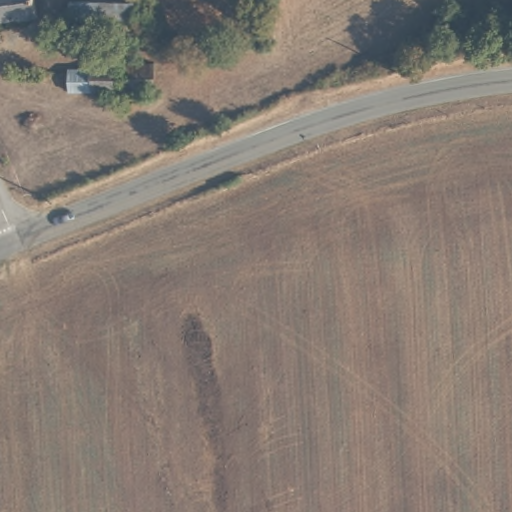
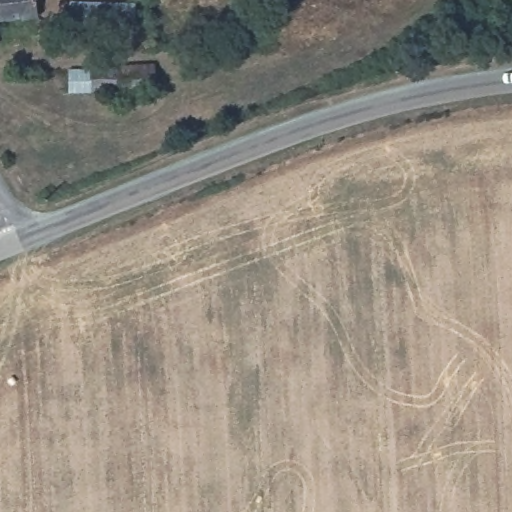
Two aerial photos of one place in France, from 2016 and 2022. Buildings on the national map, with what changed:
unchanged [(35,18),(0,21),(0,0),(33,0),(35,18)]
unchanged [(134,0),(133,27),(72,27),(69,0),(133,0),(134,0)]
unchanged [(67,63),(81,61),(179,59),(179,82),(145,85),(145,96),(124,97),(123,87),(65,89),(66,76),(67,63)]

